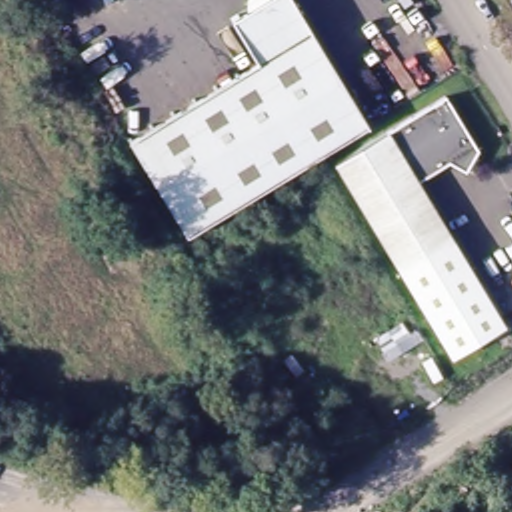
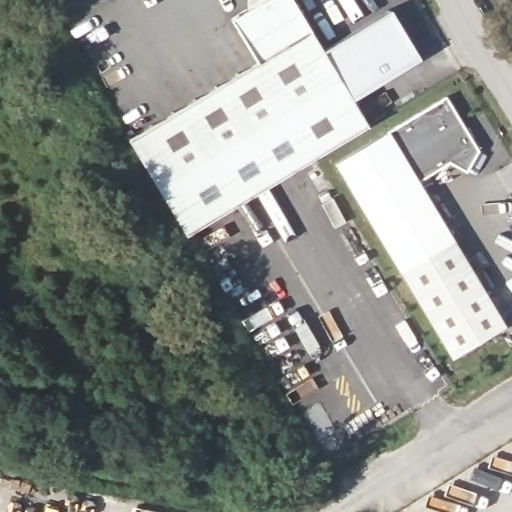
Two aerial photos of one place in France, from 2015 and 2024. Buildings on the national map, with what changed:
unchanged [(367,129),(185,239),(127,142),(256,65),(231,22),(266,0),(290,0),(367,129)]
new [(323,52),(391,9),(421,59),(351,102),(322,54),(323,52)]
unchanged [(430,107),(448,96),(480,150),(468,171),(459,166),(452,162),(433,172),(419,181),(455,240),(436,251),(403,271),(338,162),(430,107)]
unchanged [(455,242),(507,328),(450,360),(398,274),(455,242)]

